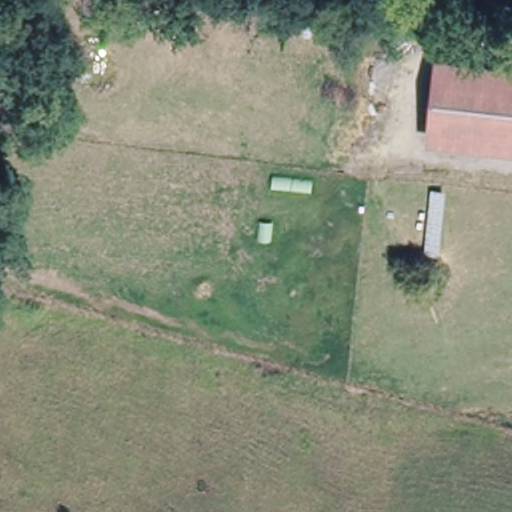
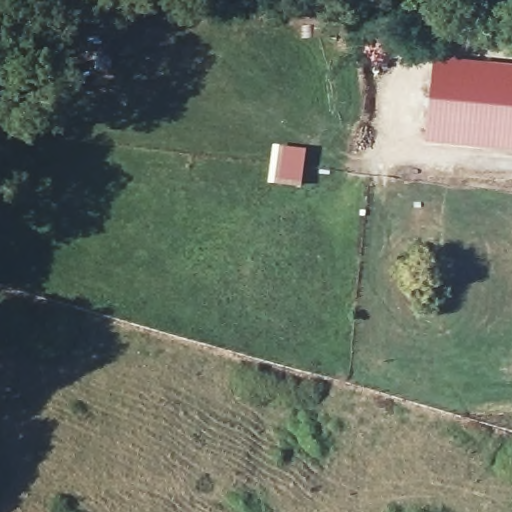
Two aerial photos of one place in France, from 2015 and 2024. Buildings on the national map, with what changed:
unchanged [(512,69),(512,150),(431,136),(443,58),(512,69)]
new [(302,144),(307,156),(303,158),(300,187),(269,185),(272,146),(302,144)]

